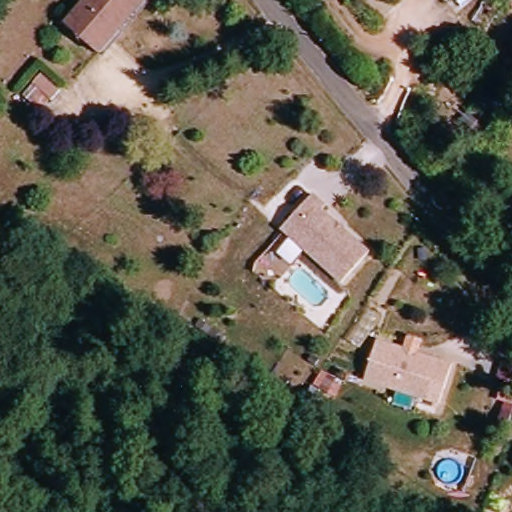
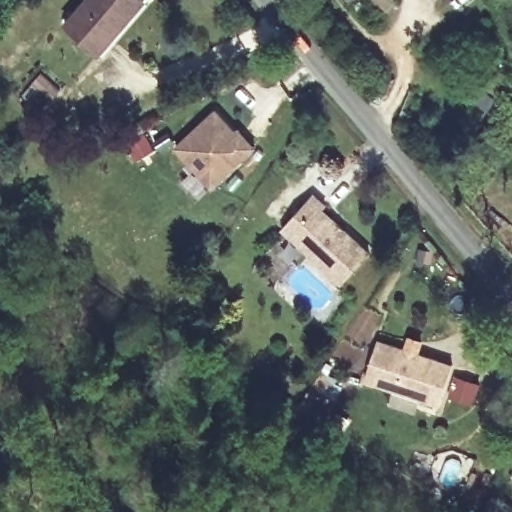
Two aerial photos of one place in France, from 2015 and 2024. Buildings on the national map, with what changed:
unchanged [(155,0),(109,49),(74,20),(92,0),(155,0)]
new [(234,129),(238,125),(257,145),(213,187),(173,147),(214,107),(234,129)]
unchanged [(281,227),(314,192),(328,205),(325,208),(372,251),(343,283),(281,227)]
unchanged [(366,382),(378,341),(451,364),(438,405),(366,382)]

